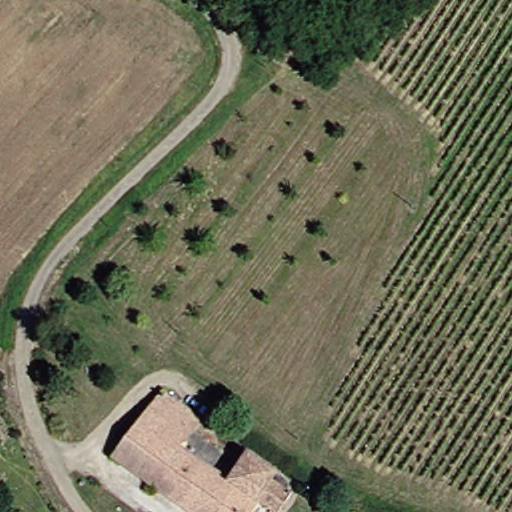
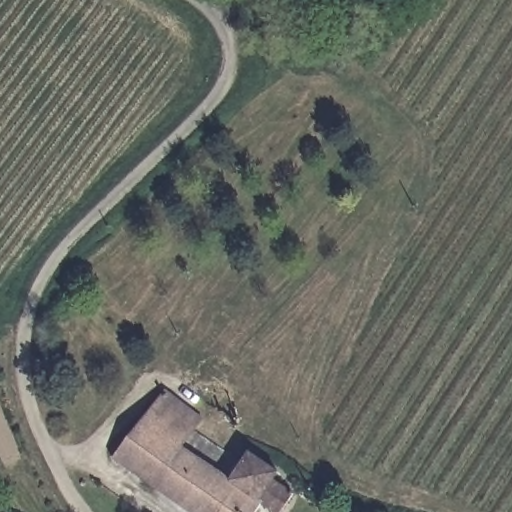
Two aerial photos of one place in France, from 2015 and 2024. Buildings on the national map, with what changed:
unchanged [(198,419),(195,423),(177,448),(222,480),(251,500),(252,502),(245,512),(187,512),(104,452),(151,385),(198,419)]
unchanged [(222,480),(237,458),(242,451),(261,465),(271,472),(266,479),(251,500),(222,480)]

